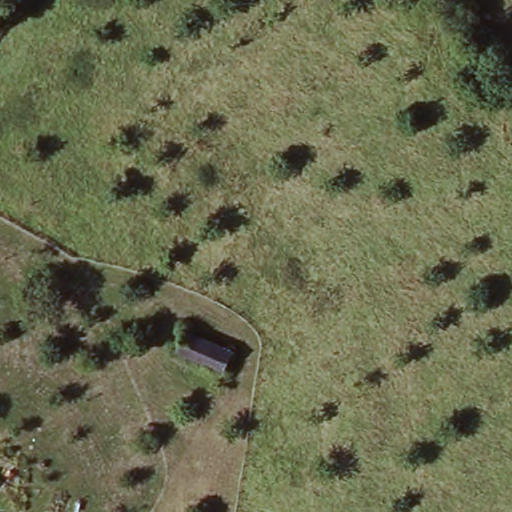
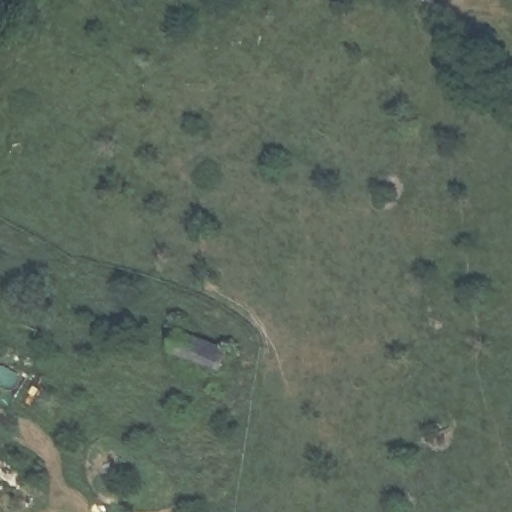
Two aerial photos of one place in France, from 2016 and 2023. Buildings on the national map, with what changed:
unchanged [(233,354),(222,376),(175,354),(185,333),(233,354)]

